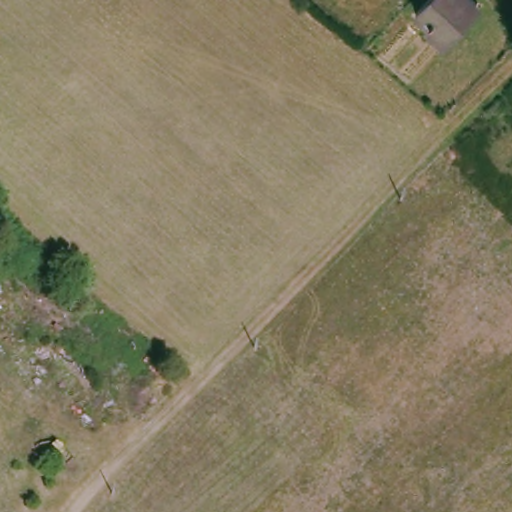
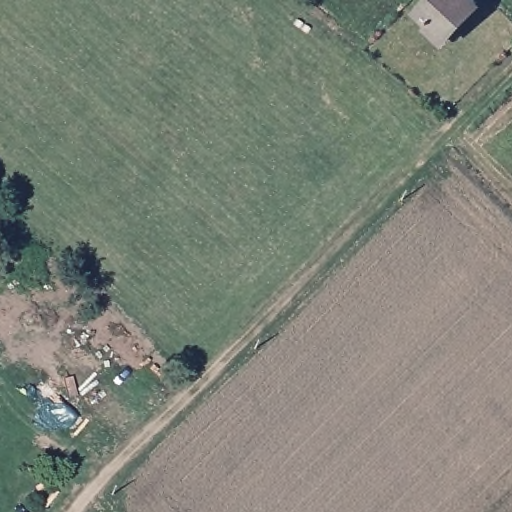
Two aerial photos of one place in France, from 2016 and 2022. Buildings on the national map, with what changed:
unchanged [(417,15),(430,0),(480,0),(446,40),(417,15)]

